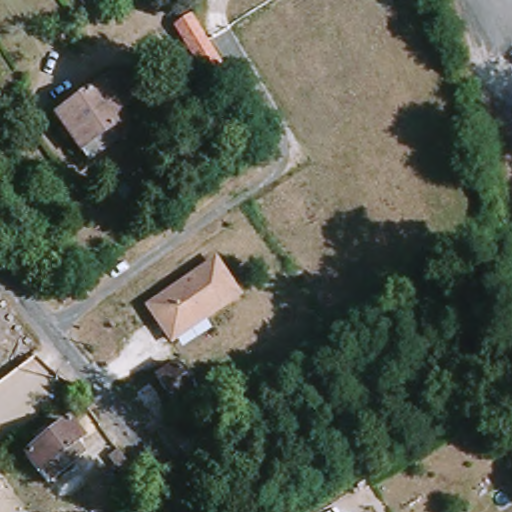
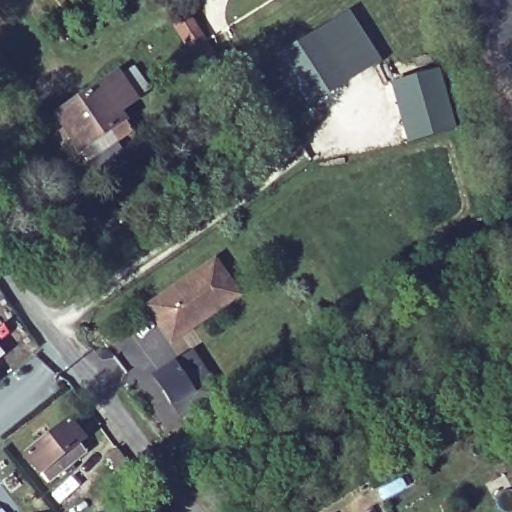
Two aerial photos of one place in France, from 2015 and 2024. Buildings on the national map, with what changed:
unchanged [(215,82),(178,17),(173,8),(186,0),(192,0),(235,74),(215,82)]
new [(349,12),(382,63),(310,109),(276,58),(349,12)]
new [(438,68),(457,129),(407,143),(390,81),(438,68)]
unchanged [(144,98),(126,109),(139,131),(92,162),(62,114),(130,72),(144,98)]
unchanged [(160,325),(149,310),(215,264),(238,297),(177,340),(173,343),(160,325)]
unchanged [(176,406),(158,379),(176,367),(194,394),(176,406)]
unchanged [(48,477),(26,449),(68,416),(82,434),(78,437),(86,447),(48,477)]
unchanged [(125,492),(115,499),(109,493),(119,485),(125,492)]

